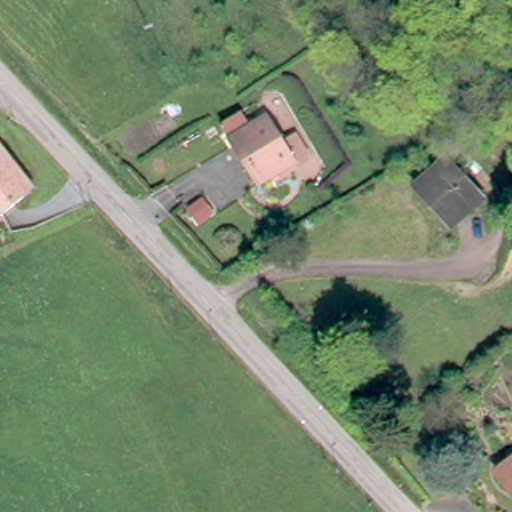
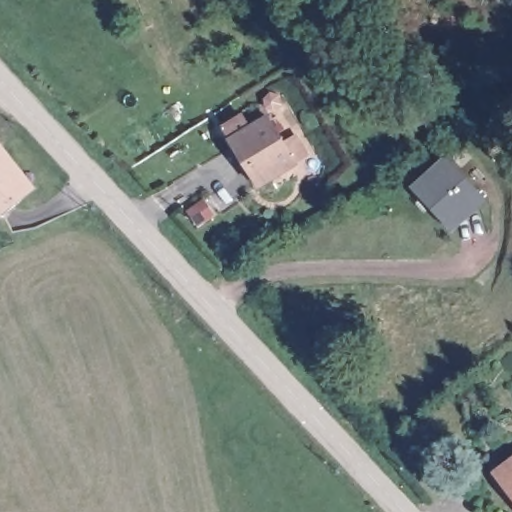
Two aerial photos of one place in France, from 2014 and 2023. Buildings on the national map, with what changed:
unchanged [(236,135),(267,115),(298,162),(260,186),(247,168),(229,140),(236,135)]
unchanged [(0,212),(0,153),(29,189),(0,212)]
unchanged [(432,167),(467,203),(439,229),(405,193),(432,167)]
unchanged [(497,469),(512,458),(512,487),(497,469)]

